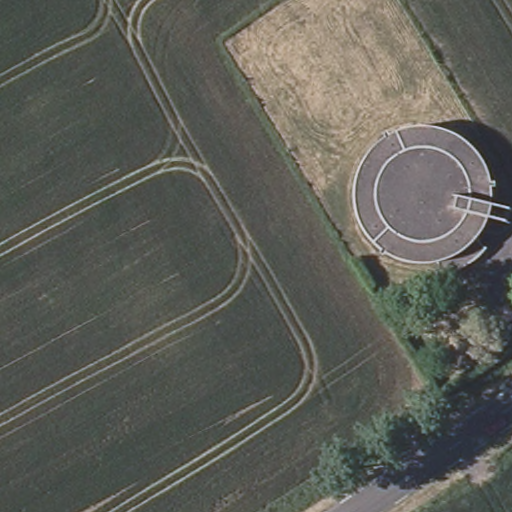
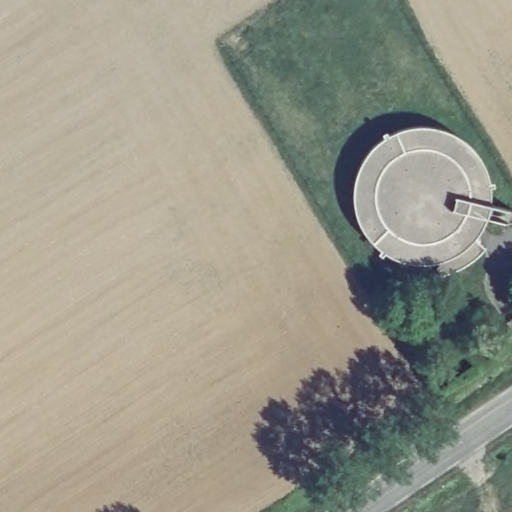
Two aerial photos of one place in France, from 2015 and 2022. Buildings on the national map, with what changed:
[]

